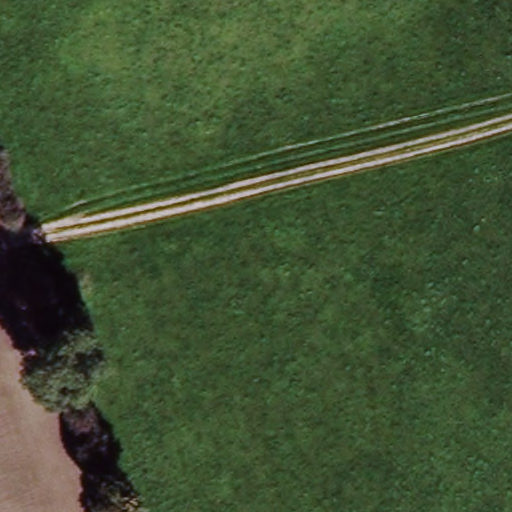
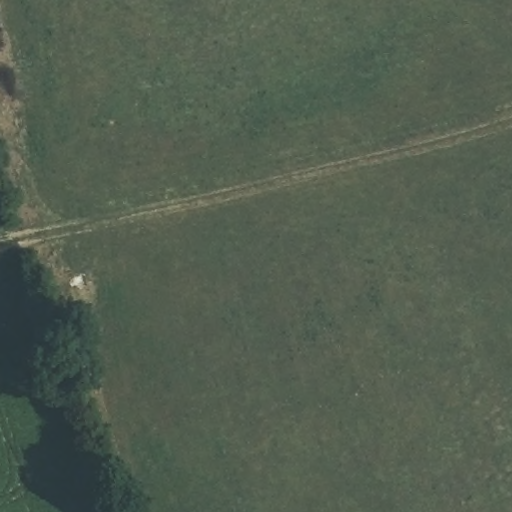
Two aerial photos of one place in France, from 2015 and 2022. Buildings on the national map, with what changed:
[]

